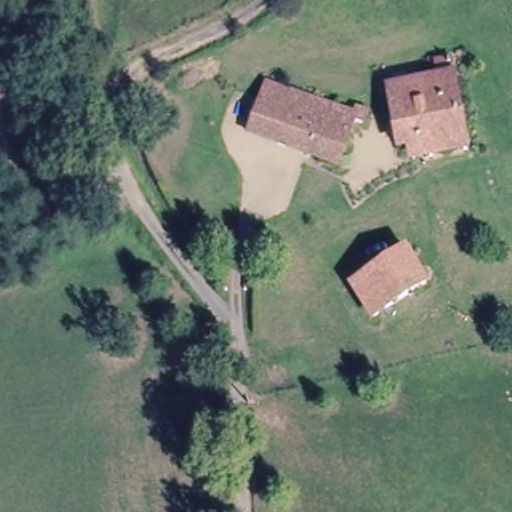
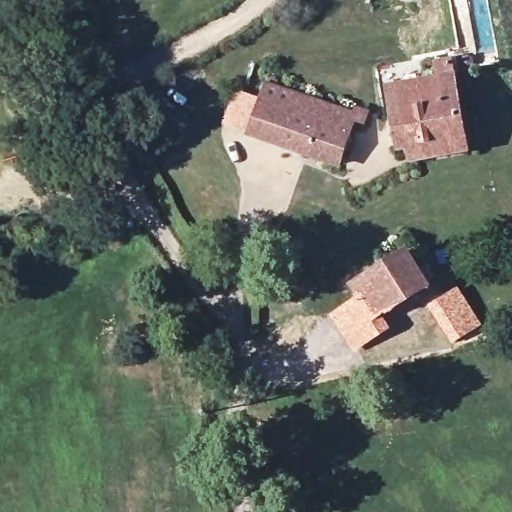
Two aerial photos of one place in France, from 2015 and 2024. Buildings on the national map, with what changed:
unchanged [(462,125),(464,125),(465,128),(415,137),(402,139),(390,80),(438,71),(435,60),(434,54),(447,51),(455,86),(462,125)]
unchanged [(244,132),(262,86),(295,98),(281,146),(244,132)]
unchanged [(295,98),(352,120),(355,107),(375,115),(369,134),(353,128),(340,168),(283,153),(285,147),(281,146),(295,98)]
unchanged [(469,153),(419,161),(415,137),(465,128),(469,153)]
new [(357,284),(380,315),(430,279),(434,286),(384,317),(392,328),(355,352),(331,314),(358,296),(349,284),(408,246),(410,249),(357,284)]
unchanged [(380,315),(357,284),(410,249),(430,279),(380,315)]
new [(458,286),(483,325),(453,344),(429,304),(458,286)]

